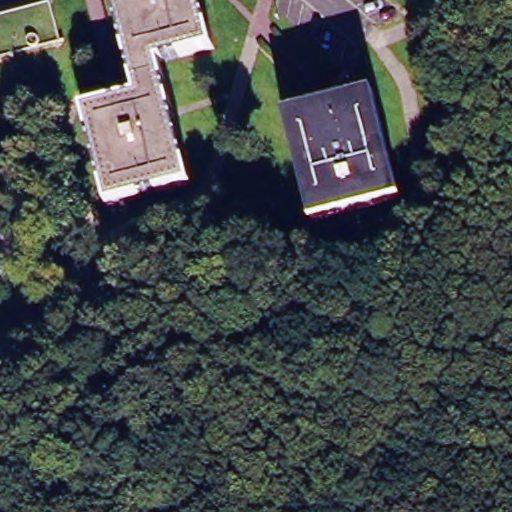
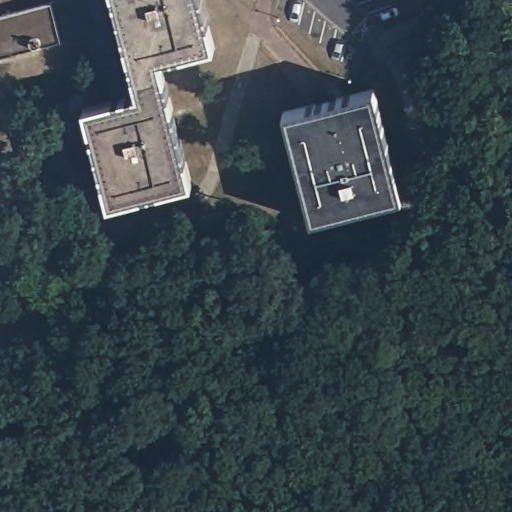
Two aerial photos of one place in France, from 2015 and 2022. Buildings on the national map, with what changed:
unchanged [(160,63),(192,183),(107,204),(82,107),(135,93),(111,0),(200,0),(213,49),(160,63)]
unchanged [(59,41),(0,57),(0,16),(50,4),(59,41)]
unchanged [(400,197),(310,220),(282,113),(372,89),(400,197)]

